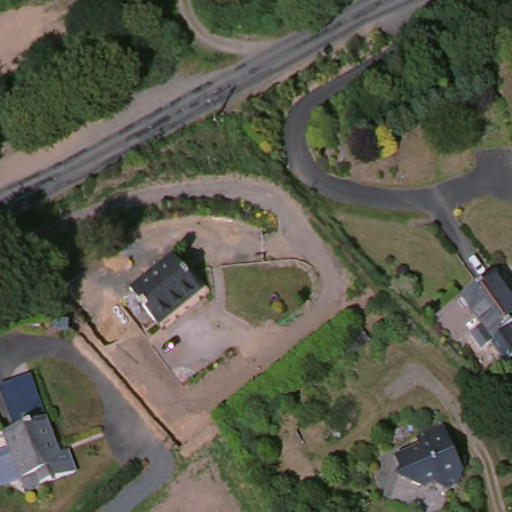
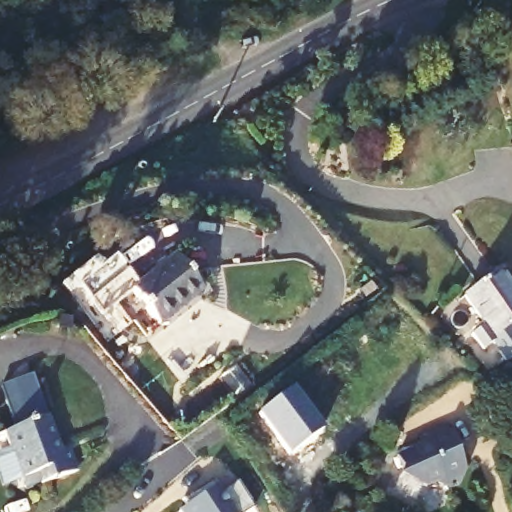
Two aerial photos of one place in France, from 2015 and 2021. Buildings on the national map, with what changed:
unchanged [(205,289),(166,322),(135,286),(173,255),(205,289)]
unchanged [(491,347),(480,355),(469,338),(483,328),(462,296),(499,272),(512,297),(512,326),(508,328),(512,336),(512,362),(502,367),(491,347)]
unchanged [(2,486),(0,480),(0,452),(10,448),(4,432),(17,427),(6,395),(5,392),(3,385),(34,374),(47,417),(60,450),(69,448),(77,471),(24,490),(21,479),(2,486)]
new [(292,386),(323,428),(291,451),(261,409),(292,386)]
unchanged [(443,487),(439,479),(422,486),(392,476),(393,462),(389,453),(416,443),(412,433),(439,422),(449,450),(460,445),(467,461),(457,482),(443,487)]
new [(181,503),(210,485),(218,497),(235,486),(251,512),(181,512),(184,510),(181,503)]

